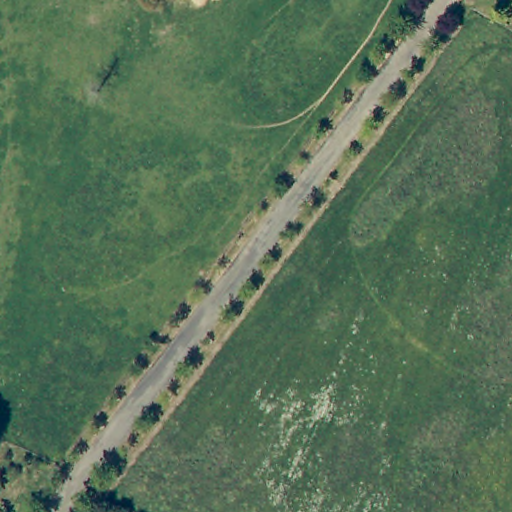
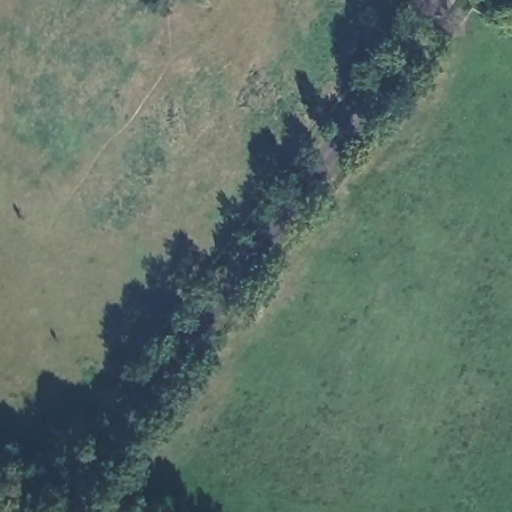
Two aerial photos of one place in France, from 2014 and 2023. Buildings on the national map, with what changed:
[]

